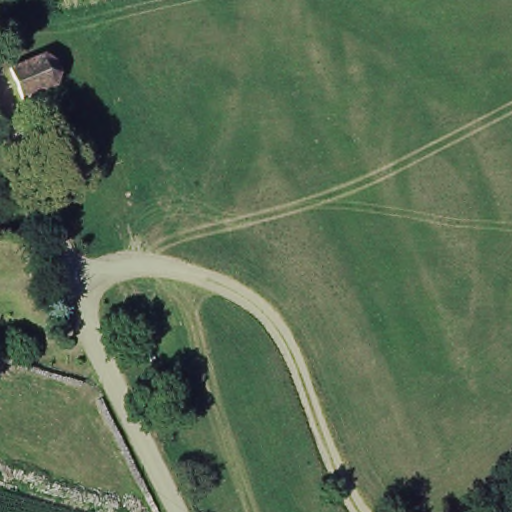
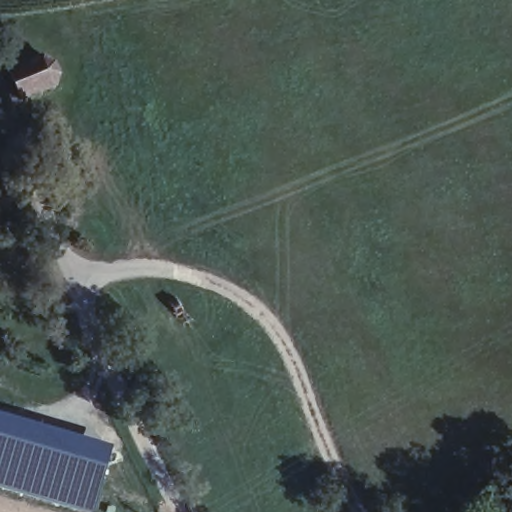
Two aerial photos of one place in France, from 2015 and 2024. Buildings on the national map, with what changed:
unchanged [(22,97),(11,67),(45,55),(62,65),(55,85),(22,97)]
new [(94,512),(78,512),(0,489),(0,413),(110,447),(94,512)]

